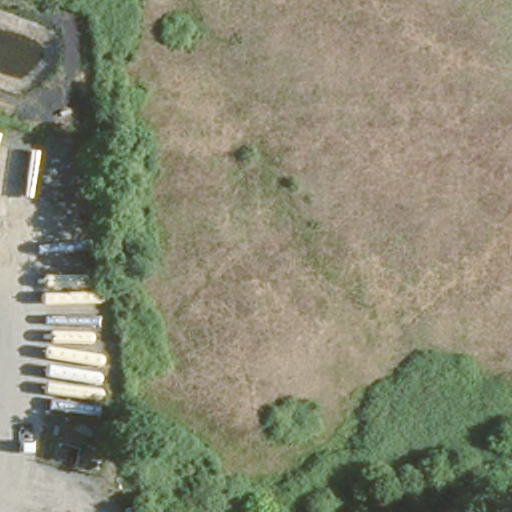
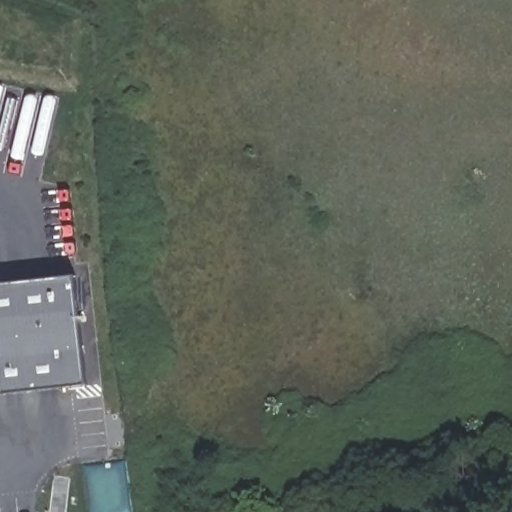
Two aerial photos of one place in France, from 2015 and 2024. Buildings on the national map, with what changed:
new [(73,277),(84,383),(0,391),(0,284),(73,277)]

